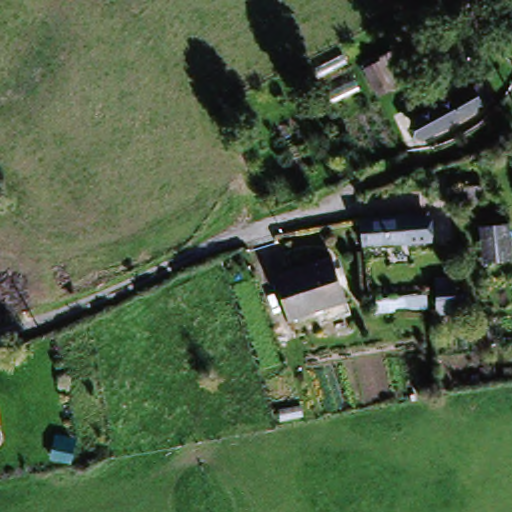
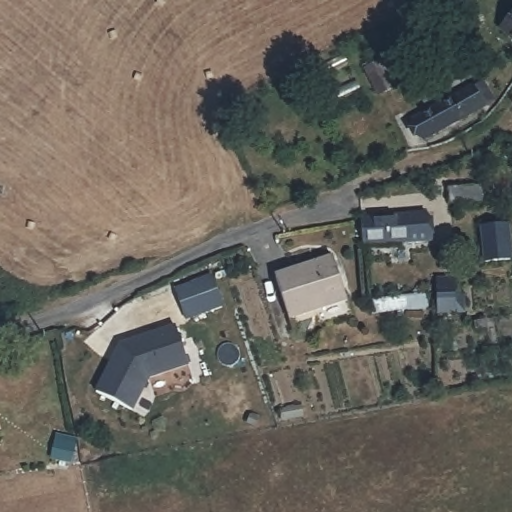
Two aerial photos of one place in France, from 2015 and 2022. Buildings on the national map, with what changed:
unchanged [(512,10),(512,39),(497,28),(512,10)]
unchanged [(369,82),(388,72),(400,92),(380,102),(369,82)]
unchanged [(464,85),(476,104),(417,141),(405,124),(464,85)]
unchanged [(489,192),(490,210),(452,210),(450,194),(489,192)]
unchanged [(425,239),(360,245),(359,220),(422,214),(425,239)]
unchanged [(509,259),(482,260),(479,231),(505,229),(509,259)]
unchanged [(327,265),(337,301),(283,317),(272,281),(327,265)]
new [(224,315),(188,328),(177,299),(213,285),(224,315)]
unchanged [(445,306),(445,295),(458,293),(460,304),(466,303),(467,313),(446,315),(445,306)]
new [(192,371),(152,380),(137,406),(102,386),(126,345),(184,332),(192,371)]

